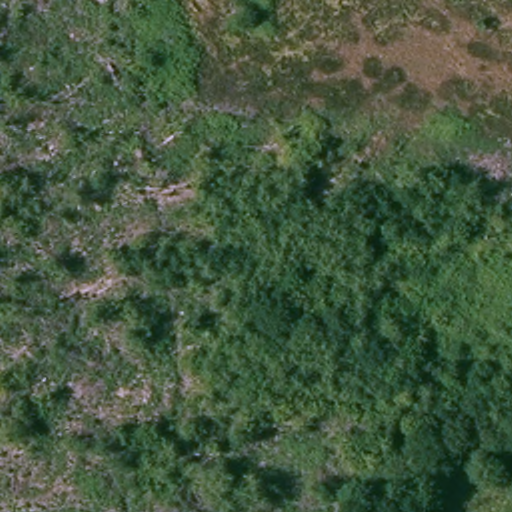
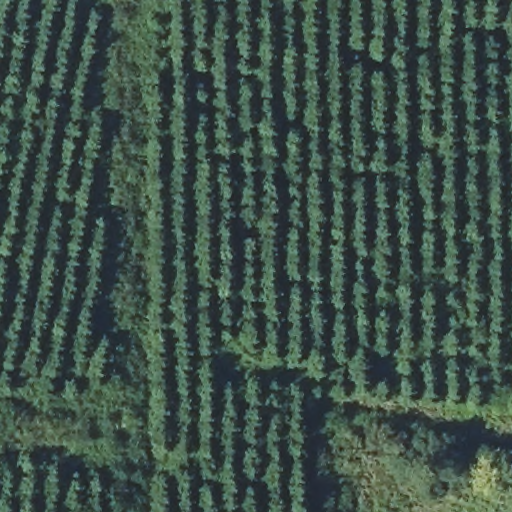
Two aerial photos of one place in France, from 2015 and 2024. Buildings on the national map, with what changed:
[]

